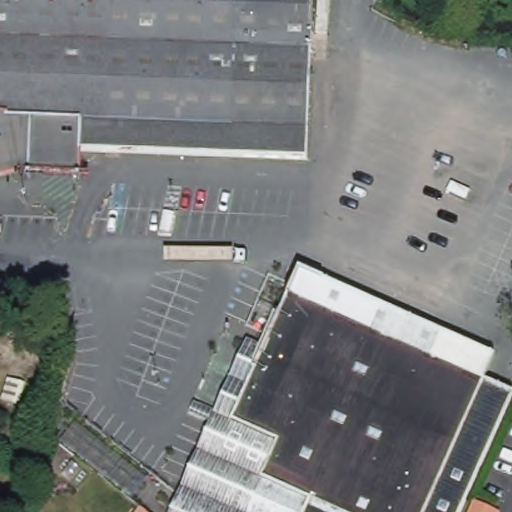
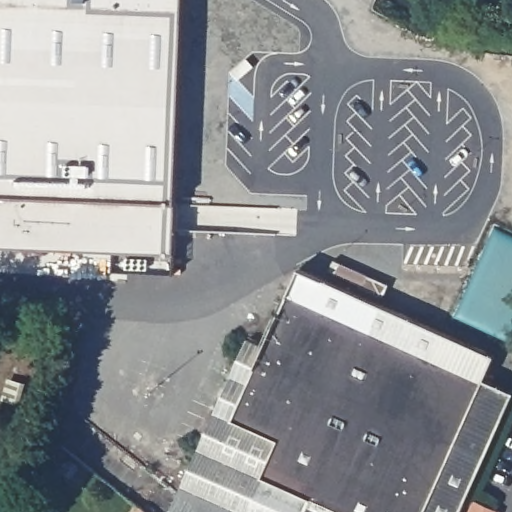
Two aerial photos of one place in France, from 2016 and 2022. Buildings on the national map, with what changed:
demolished [(310,37),(308,160),(205,156),(83,152),(82,172),(32,170),(0,177),(0,0),(312,0),(310,37)]
new [(175,250),(0,243),(0,0),(185,0),(175,250)]
unchanged [(267,346),(302,267),(307,269),(446,329),(436,353),(489,376),(429,512),(240,512),(185,488),(251,339),(267,346)]
unchanged [(476,489),(466,512),(429,512),(489,376),(512,386),(512,407),(476,489)]
unchanged [(240,512),(178,512),(174,511),(185,488),(240,512)]
unchanged [(473,512),(478,503),(497,512),(473,512)]

